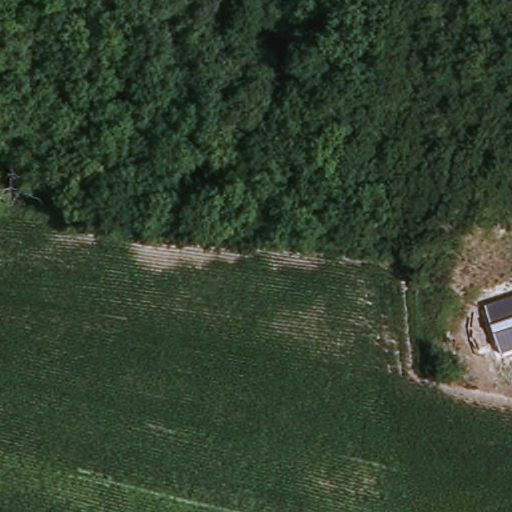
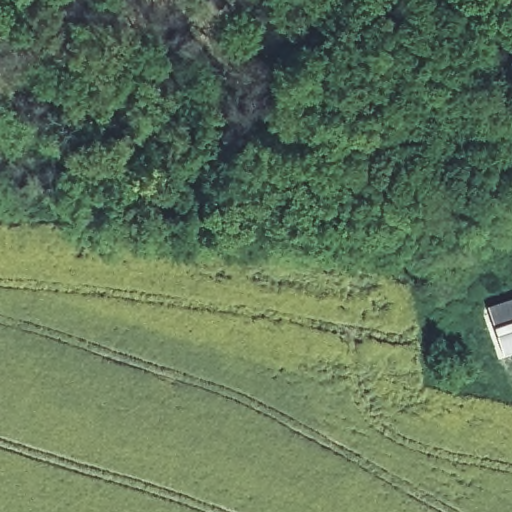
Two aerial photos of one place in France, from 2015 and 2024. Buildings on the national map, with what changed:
unchanged [(512,345),(502,347),(481,299),(512,291),(512,345)]

